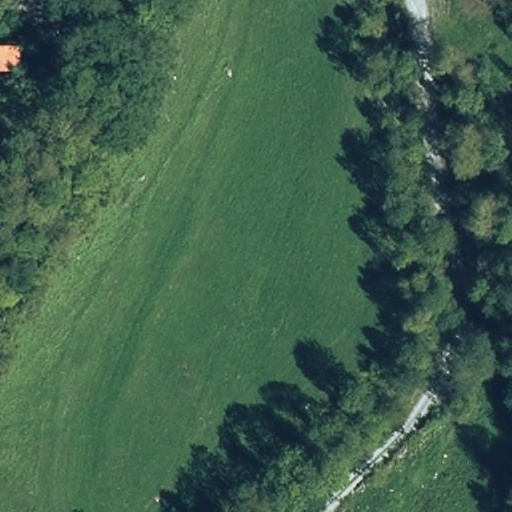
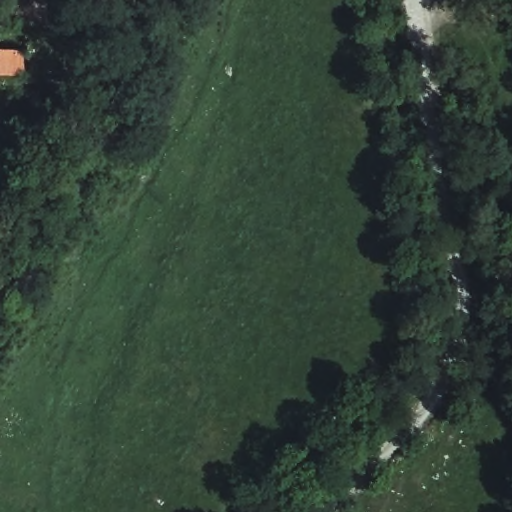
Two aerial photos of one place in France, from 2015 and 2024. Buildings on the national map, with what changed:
unchanged [(0,49),(22,49),(22,75),(0,75),(0,49)]

